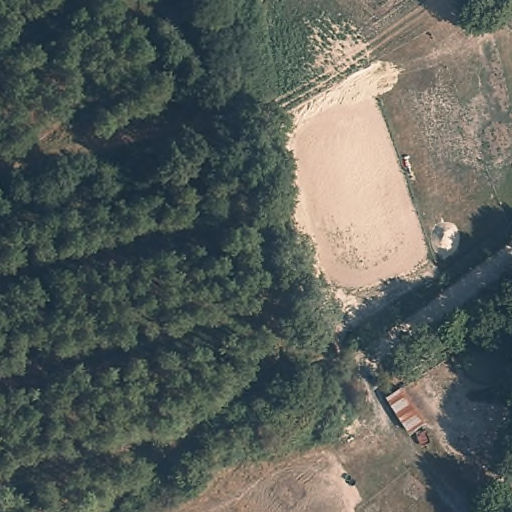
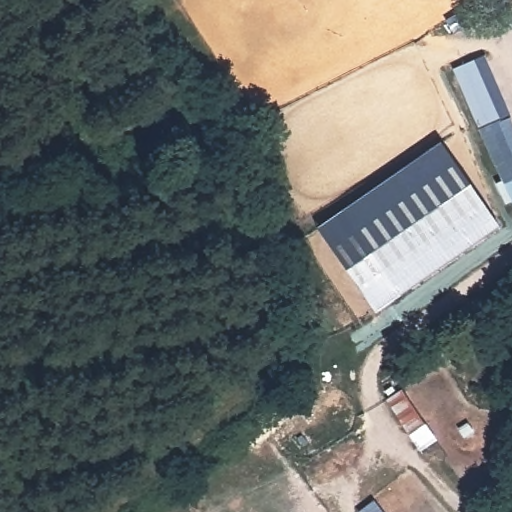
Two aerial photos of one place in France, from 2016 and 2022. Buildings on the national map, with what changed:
unchanged [(472,61),(512,151),(512,202),(454,71),(472,61)]
new [(440,142),(499,227),(400,296),(341,211),(440,142)]
unchanged [(388,398),(408,388),(430,423),(412,436),(388,398)]

